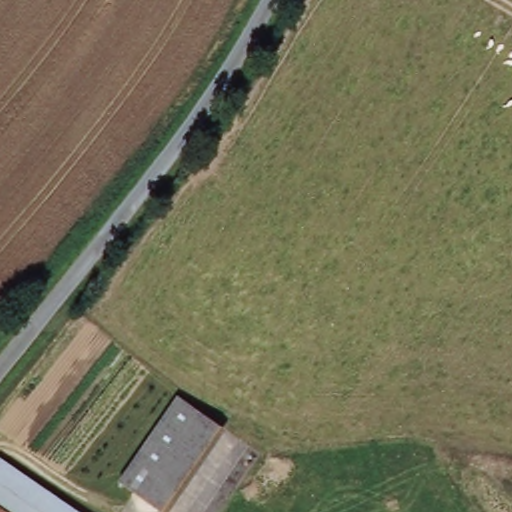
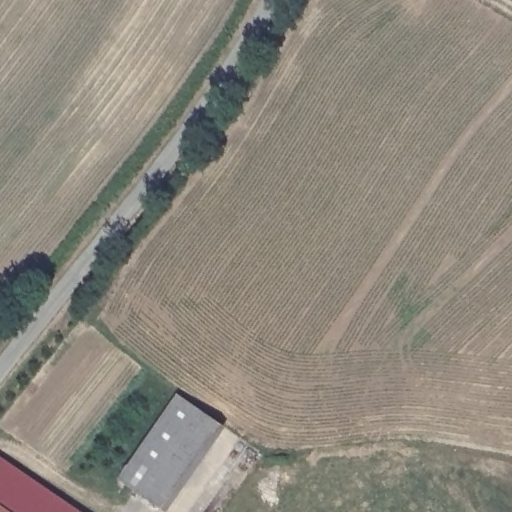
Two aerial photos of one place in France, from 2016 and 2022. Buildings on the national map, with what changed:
unchanged [(185,401),(225,428),(169,511),(128,484),(185,401)]
unchanged [(83,512),(12,512),(0,504),(0,456),(0,455),(83,512)]
unchanged [(0,512),(0,504),(12,512),(0,512)]

